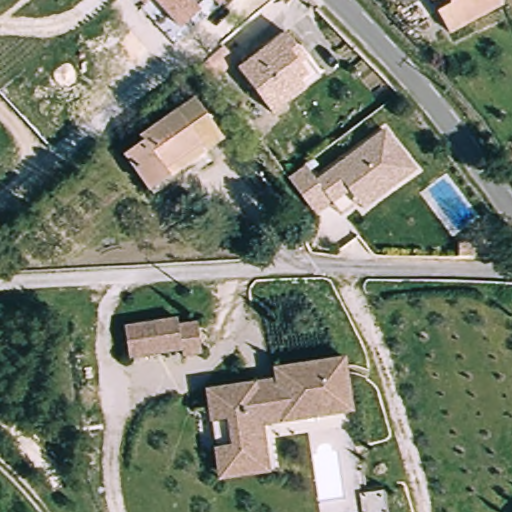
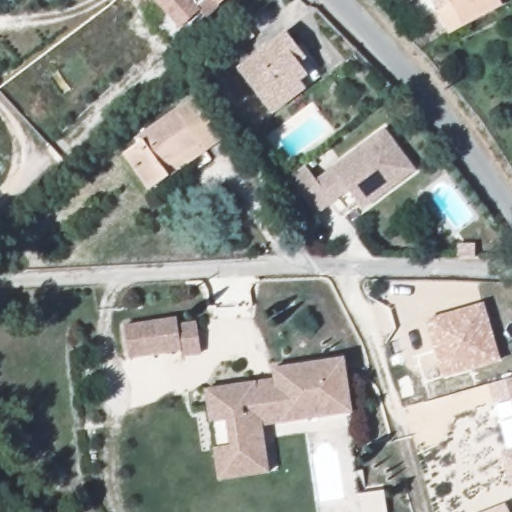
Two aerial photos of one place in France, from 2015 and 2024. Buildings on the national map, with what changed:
unchanged [(205,1),(208,4),(189,22),(167,0),(206,0),(205,1)]
unchanged [(499,12),(440,29),(434,6),(450,0),(496,0),(499,12)]
unchanged [(238,68),(285,30),(298,48),(306,42),(323,70),(290,96),(272,110),(238,68)]
new [(224,40),(232,50),(225,63),(210,75),(198,61),(213,48),(224,40)]
unchanged [(227,147),(216,156),(208,148),(169,177),(142,141),(161,128),(155,120),(189,96),(227,147)]
unchanged [(349,192),(344,183),(326,194),(313,202),(284,166),(302,155),(313,172),(385,128),(411,169),(384,186),(356,203),(349,192)]
new [(484,304),(502,362),(443,380),(426,321),(484,304)]
unchanged [(199,352),(179,354),(178,350),(128,355),(125,319),(174,314),(174,322),(195,320),(199,352)]
unchanged [(253,380),(273,378),(271,368),(339,361),(349,419),(261,430),(266,459),(235,462),(226,404),(207,406),(204,386),(253,380)]
new [(494,405),(489,385),(512,378),(512,409),(510,401),(494,405)]
unchanged [(268,472),(219,478),(207,406),(226,404),(235,462),(266,459),(268,472)]
new [(510,487),(501,454),(512,450),(512,486),(510,487)]

